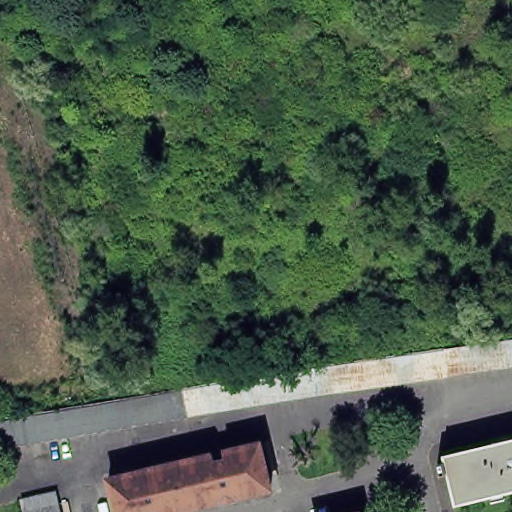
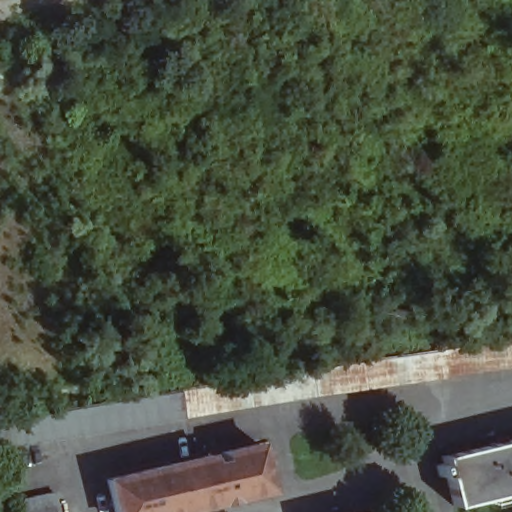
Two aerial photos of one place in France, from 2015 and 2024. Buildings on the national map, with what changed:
unchanged [(270,376),(282,374),(295,372),(308,370),(321,367),(327,366),(335,365),(348,364),(361,362),(375,360),(387,358),(397,357),(400,356),(413,355),(427,353),(440,351),(453,349),(466,347),(479,346),(492,344),(505,342),(512,341),(512,367),(508,368),(495,370),(482,371),(470,373),(456,375),(457,376),(443,378),(430,380),(417,381),(405,383),(391,385),(378,387),(365,389),(352,391),(339,392),(326,394),(312,396),(300,399),(287,401),(274,403),(261,405),(248,407),(235,409),(222,411),(210,414),(196,416),(192,389),(205,387),(218,384),(231,382),(243,380),(256,378),(270,376)]
unchanged [(33,417),(47,415),(60,412),(73,410),(86,408),(100,406),(112,404),(125,402),(138,399),(152,397),(165,395),(178,393),(191,391),(196,417),(182,419),(170,422),(156,424),(143,426),(130,428),(117,430),(103,432),(90,435),(77,437),(65,439),(51,441),(38,443),(25,446),(11,449),(0,452),(0,424),(5,423),(19,419),(33,417)]
unchanged [(441,465),(448,463),(446,456),(447,455),(448,456),(512,441),(512,492),(460,504),(460,505),(458,506),(450,474),(443,476),(441,465)]
unchanged [(213,462),(223,459),(221,452),(258,443),(269,489),(175,512),(168,512),(167,510),(161,512),(115,512),(107,479),(211,454),(213,462)]
unchanged [(49,512),(14,512),(10,495),(44,487),(49,512)]

